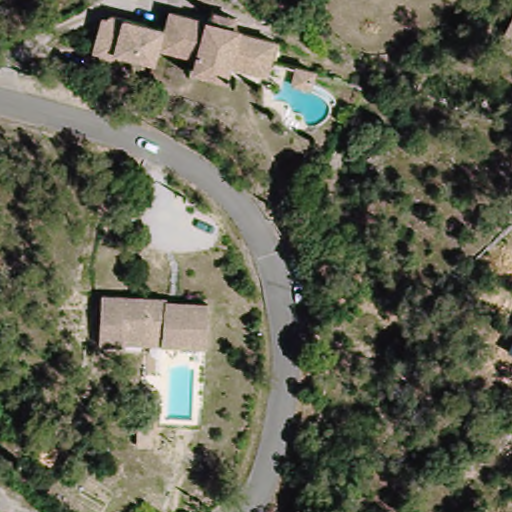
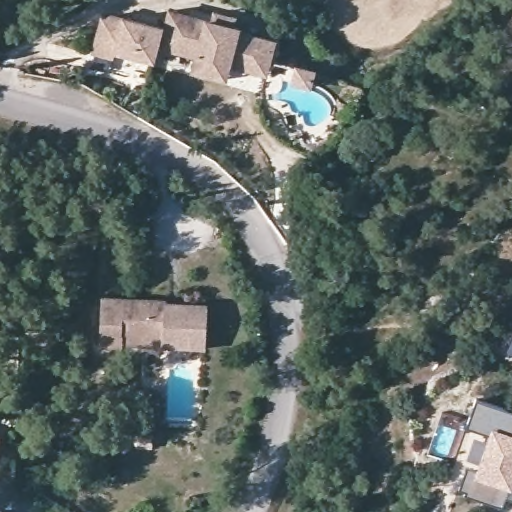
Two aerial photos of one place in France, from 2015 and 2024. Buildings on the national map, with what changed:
unchanged [(190,73),(194,57),(160,48),(166,25),(169,11),(210,21),(213,10),(237,16),(234,27),(240,29),(239,32),(274,41),(266,75),(230,66),(226,82),(190,73)]
unchanged [(160,48),(152,65),(90,49),(99,12),(166,25),(160,48)]
unchanged [(512,30),(512,57),(502,52),(512,30)]
unchanged [(309,62),(307,81),(291,79),(293,61),(309,62)]
unchanged [(122,352),(99,351),(101,313),(102,302),(125,303),(164,305),(164,307),(207,310),(205,353),(162,352),(123,350),(122,352)]
unchanged [(512,353),(508,352),(512,343),(512,353)]
new [(505,511),(465,498),(466,496),(459,493),(465,475),(452,471),(473,401),(512,413),(512,492),(510,492),(505,511)]

